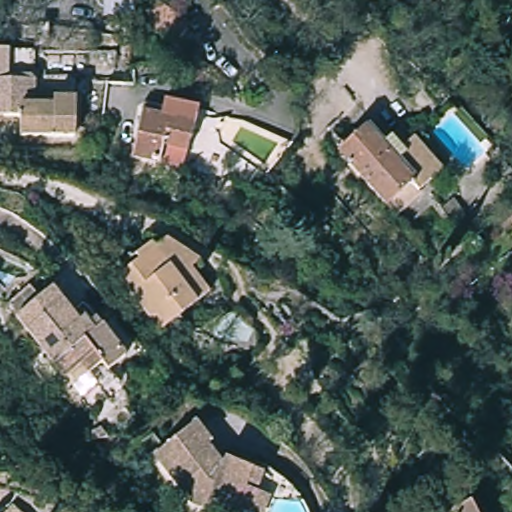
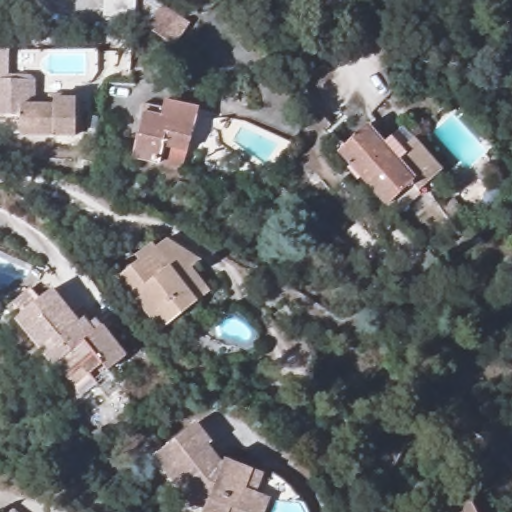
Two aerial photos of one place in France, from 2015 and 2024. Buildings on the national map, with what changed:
unchanged [(99,17),(101,0),(133,0),(131,20),(99,17)]
unchanged [(188,21),(173,44),(139,22),(144,0),(153,0),(180,16),(188,21)]
unchanged [(0,118),(0,84),(5,84),(5,75),(25,76),(25,85),(30,85),(29,111),(51,111),(51,105),(74,105),(73,144),(18,142),(18,119),(0,118)]
unchanged [(185,171),(159,165),(132,160),(143,109),(162,112),(165,105),(199,112),(195,127),(210,131),(203,158),(189,154),(163,147),(188,154),(185,171)]
unchanged [(368,125),(380,139),(385,144),(405,125),(445,169),(423,190),(415,181),(387,205),(340,150),(365,128),(368,125)]
unchanged [(432,224),(442,215),(459,235),(449,242),(432,224)]
unchanged [(147,260),(143,255),(159,242),(163,246),(173,238),(208,260),(199,268),(217,291),(172,335),(126,275),(147,260)]
unchanged [(108,383),(103,377),(87,385),(80,377),(63,390),(5,318),(28,299),(38,312),(51,301),(78,336),(83,332),(87,337),(94,331),(100,338),(125,368),(108,383)]
unchanged [(182,500),(171,486),(147,455),(186,425),(213,461),(215,459),(243,470),(254,473),(247,490),(257,495),(250,512),(236,512),(234,511),(233,512),(194,512),(196,505),(182,500)]
unchanged [(14,512),(6,512),(9,508),(14,512)]
unchanged [(466,512),(455,512),(464,508),(466,512)]

